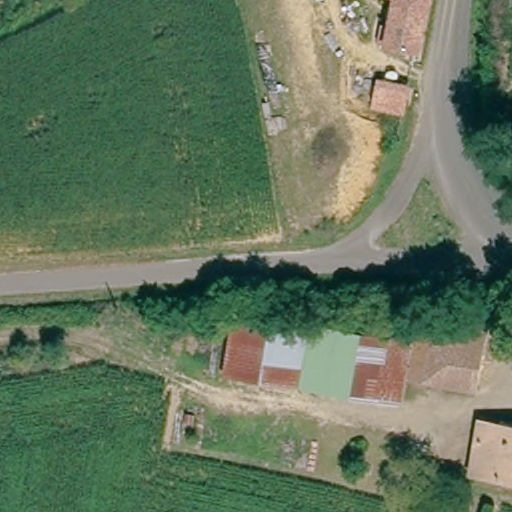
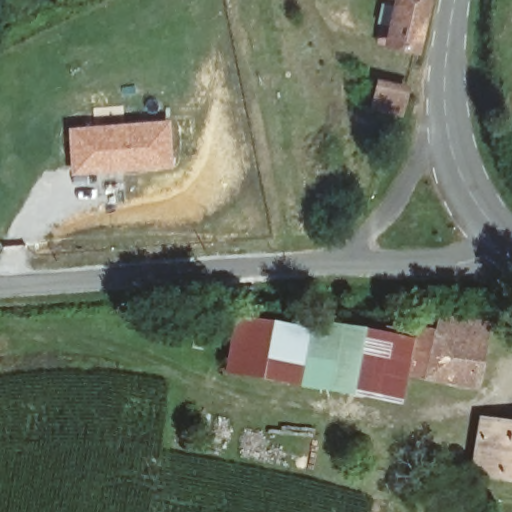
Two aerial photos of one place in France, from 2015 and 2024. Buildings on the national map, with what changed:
unchanged [(391,43),(398,0),(431,0),(421,48),(391,43)]
unchanged [(370,102),(372,87),(402,93),(399,107),(370,102)]
new [(167,124),(170,166),(74,173),(71,130),(167,124)]
unchanged [(430,336),(432,318),(483,325),(473,392),(404,382),(410,352),(414,331),(430,336)]
unchanged [(237,321),(410,352),(404,382),(402,394),(400,408),(228,377),(230,365),(237,321)]
unchanged [(512,429),(512,480),(473,475),(482,425),(512,429)]

